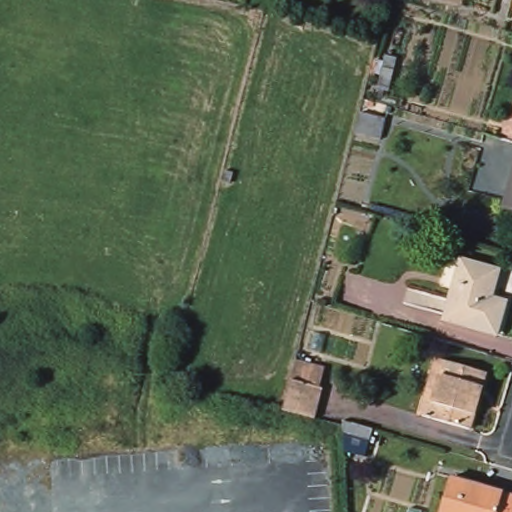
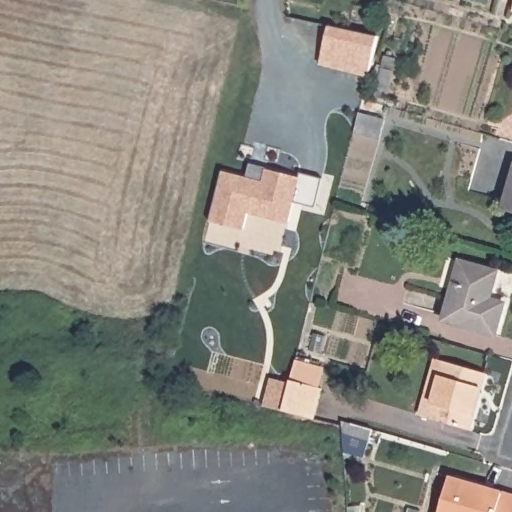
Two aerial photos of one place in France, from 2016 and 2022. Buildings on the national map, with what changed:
new [(330,26),(378,37),(368,77),(321,67),(330,26)]
new [(359,114),(385,120),(380,140),(354,134),(359,114)]
new [(220,174),(244,180),(247,167),(296,180),(297,175),(320,182),(312,211),(291,205),(285,227),(245,216),(240,233),(207,225),(220,174)]
unchanged [(512,181),(512,209),(505,207),(512,181)]
unchanged [(498,264),(492,292),(507,296),(497,330),(447,316),(464,255),(498,264)]
unchanged [(486,368),(471,427),(421,414),(425,397),(434,400),(445,357),(486,368)]
unchanged [(324,386),(317,417),(284,410),(292,377),(324,386)]
unchanged [(348,417),(373,424),(369,440),(348,434),(348,424),(348,417)]
unchanged [(512,512),(441,512),(452,475),(512,492),(512,512)]

